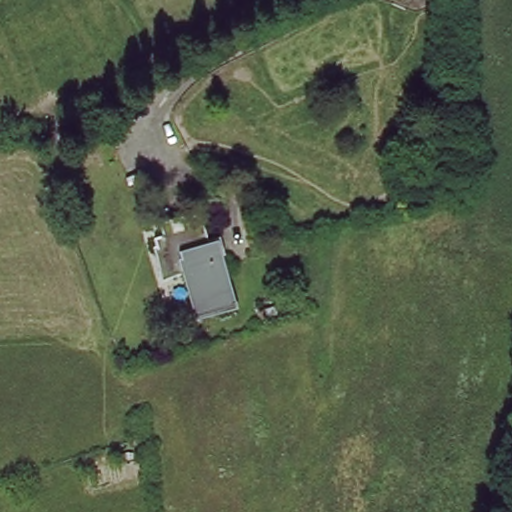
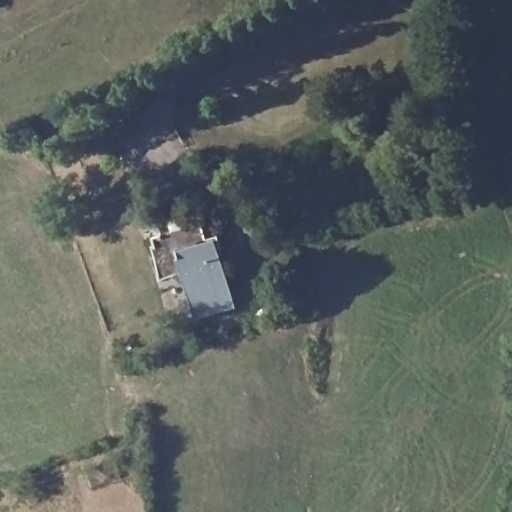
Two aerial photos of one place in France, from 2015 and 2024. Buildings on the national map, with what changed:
unchanged [(178,276),(167,240),(180,236),(174,220),(194,212),(198,222),(206,220),(220,255),(228,253),(243,308),(209,319),(195,270),(178,276)]

